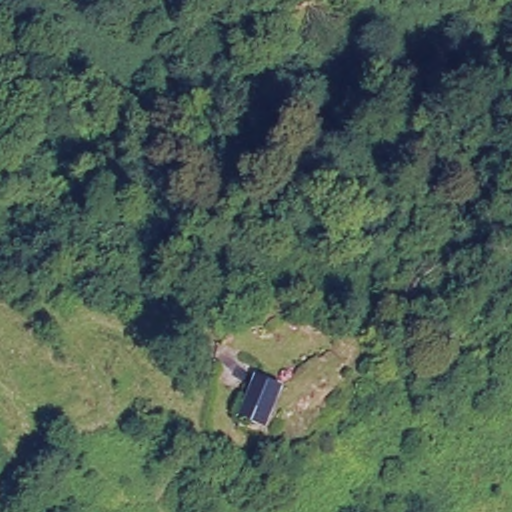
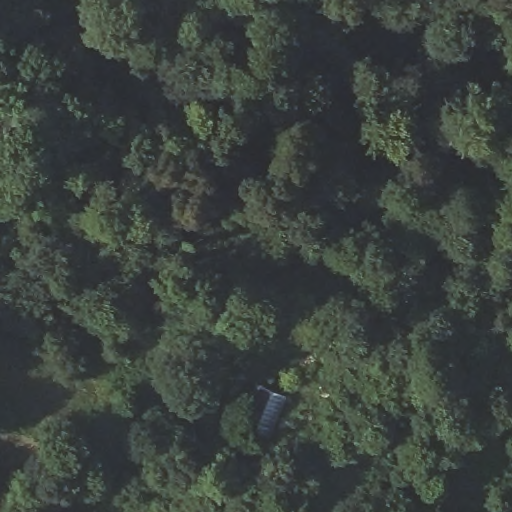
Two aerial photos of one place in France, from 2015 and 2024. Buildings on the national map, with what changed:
unchanged [(285,390),(267,433),(237,423),(256,378),(285,390)]

